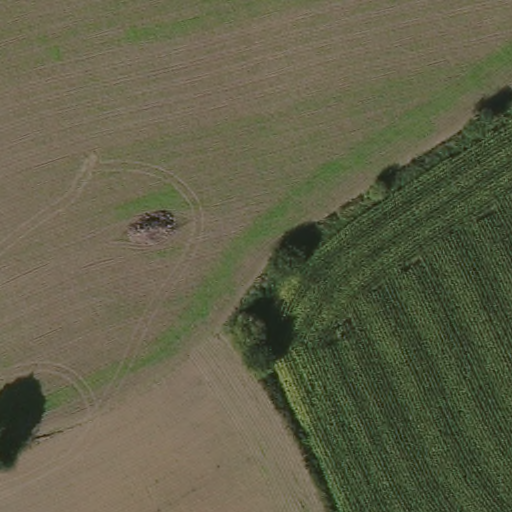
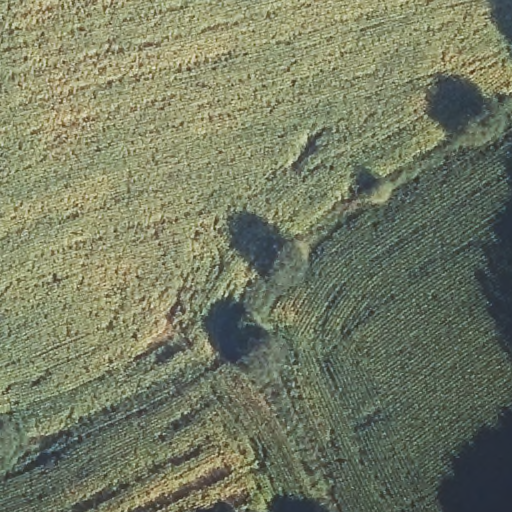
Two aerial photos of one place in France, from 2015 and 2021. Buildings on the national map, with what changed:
[]

